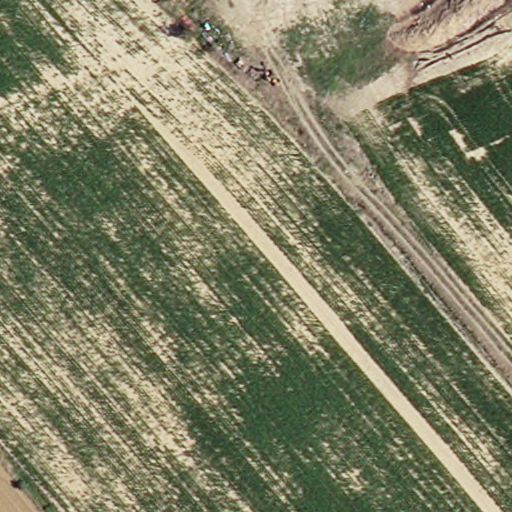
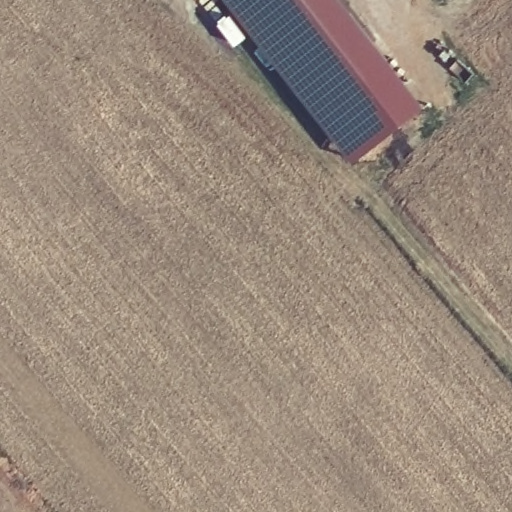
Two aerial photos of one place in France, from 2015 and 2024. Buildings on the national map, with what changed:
new [(353,159),(230,0),(341,0),(419,104),(353,159)]

